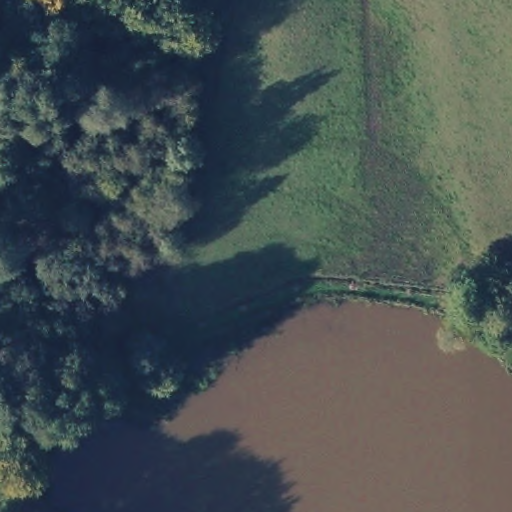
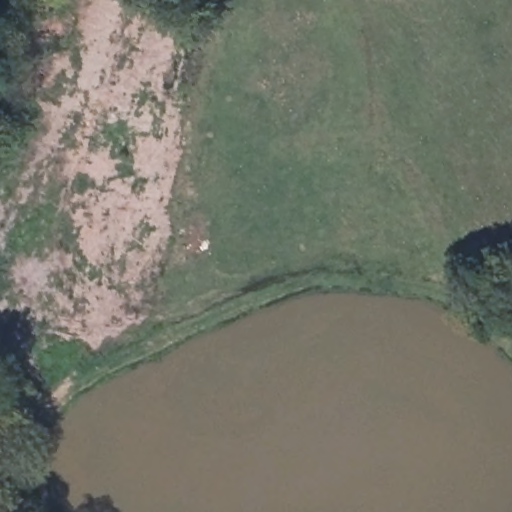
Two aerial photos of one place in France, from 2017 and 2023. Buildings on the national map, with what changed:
unchanged [(16,436),(14,452),(4,452),(6,435),(16,436)]

